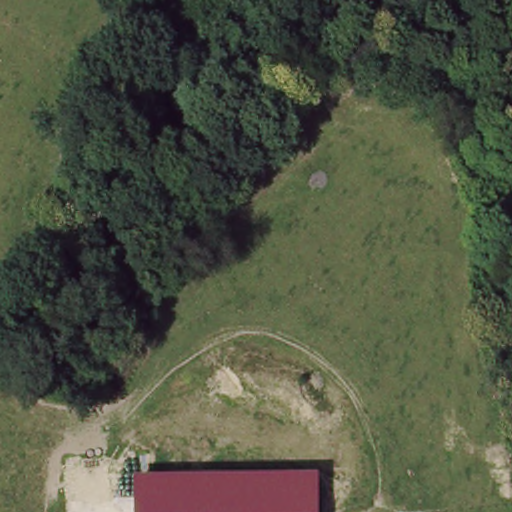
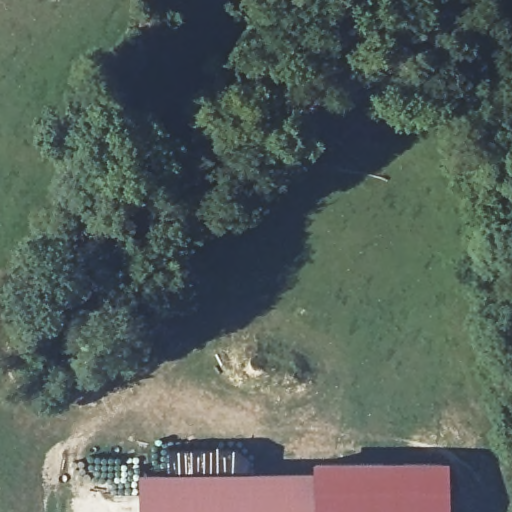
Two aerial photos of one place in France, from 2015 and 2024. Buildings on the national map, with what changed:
new [(310,472),(310,461),(447,462),(447,512),(322,512),(320,472),(310,472)]
unchanged [(322,512),(140,512),(140,475),(320,472),(322,512)]

